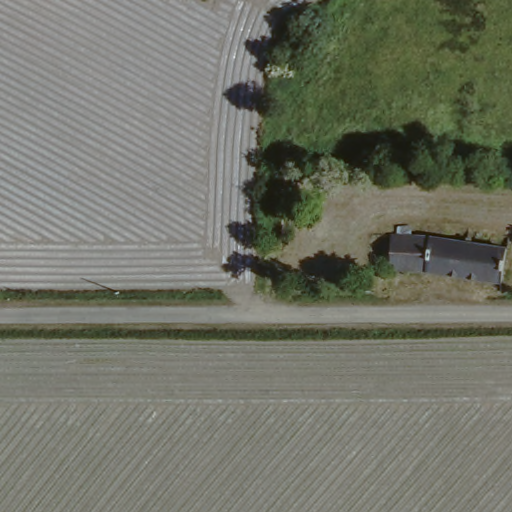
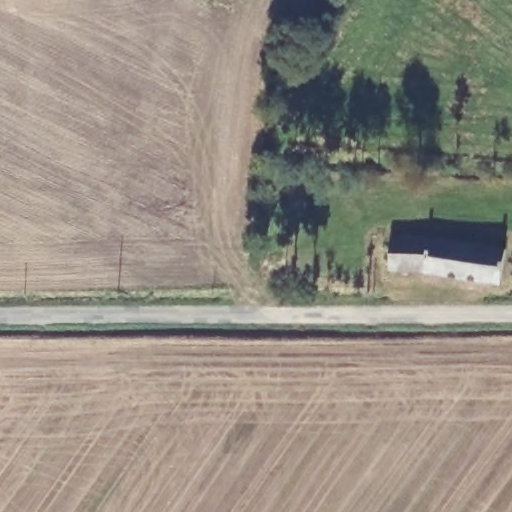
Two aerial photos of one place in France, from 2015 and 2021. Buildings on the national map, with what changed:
unchanged [(509,246),(505,277),(439,267),(396,263),(398,235),(443,236),(509,246)]

